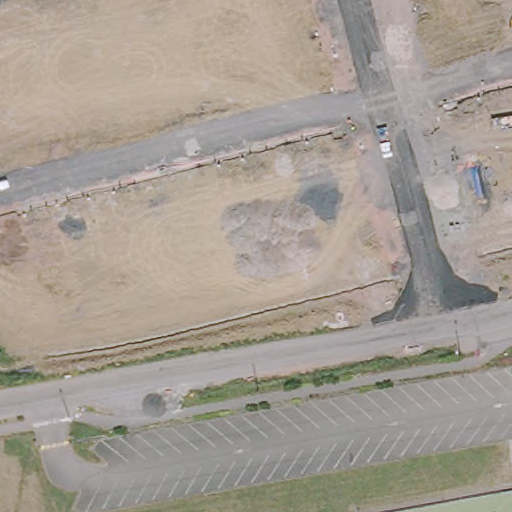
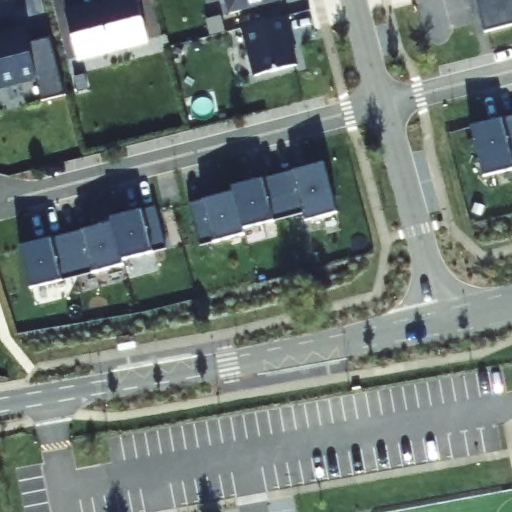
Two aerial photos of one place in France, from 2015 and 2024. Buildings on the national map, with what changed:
new [(66,16),(124,0),(137,0),(148,40),(78,58),(66,16)]
new [(229,0),(287,0),(288,3),(233,16),(229,0)]
new [(512,0),(512,25),(485,33),(477,0),(512,0)]
new [(288,21),(299,69),(259,79),(245,31),(288,21)]
new [(25,42),(50,36),(64,94),(40,100),(34,76),(0,84),(0,33),(22,28),(25,42)]
new [(512,116),(512,169),(485,177),(470,128),(512,116)]
new [(189,205),(233,194),(231,189),(324,164),(335,213),(305,221),(304,214),(244,228),(246,233),(199,246),(189,205)]
new [(20,247),(113,224),(110,220),(156,208),(165,247),(124,259),(125,264),(31,289),(20,247)]

